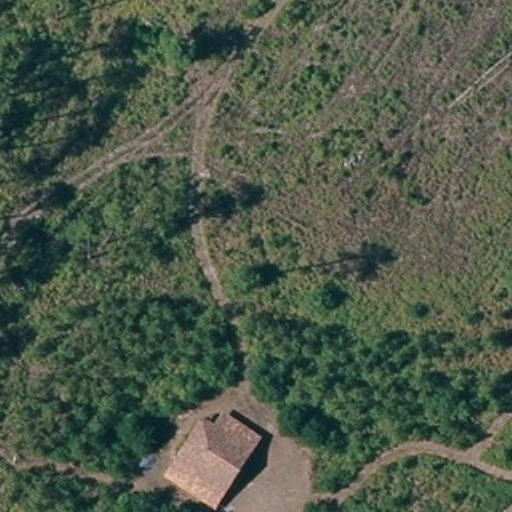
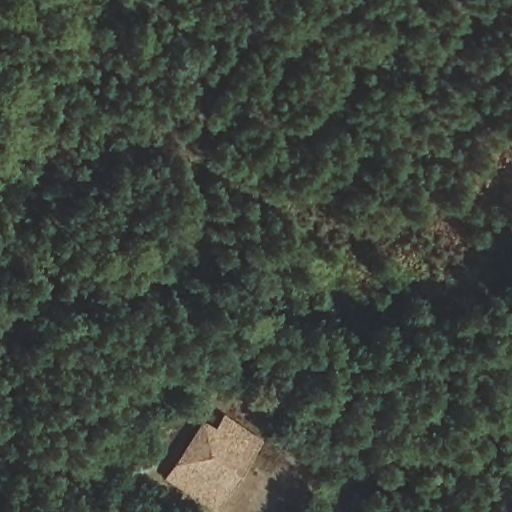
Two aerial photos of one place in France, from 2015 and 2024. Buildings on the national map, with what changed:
unchanged [(161,479),(201,415),(214,425),(223,413),(264,438),(218,512),(210,512),(161,479)]

